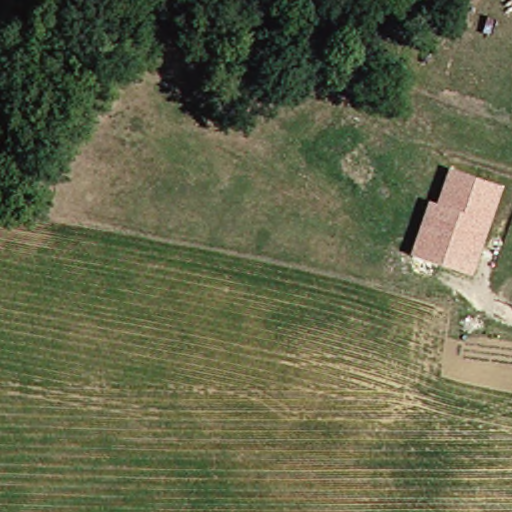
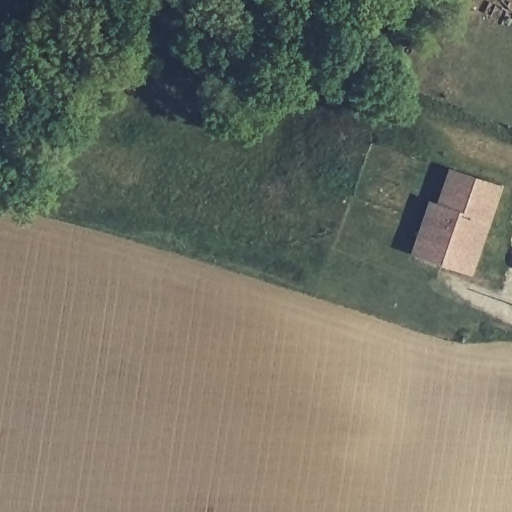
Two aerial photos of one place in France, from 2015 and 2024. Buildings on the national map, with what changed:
unchanged [(460,257),(426,244),(439,209),(451,172),(502,189),(470,278),(454,273),(460,257)]
unchanged [(411,258),(431,205),(439,209),(426,244),(460,257),(454,273),(411,258)]

